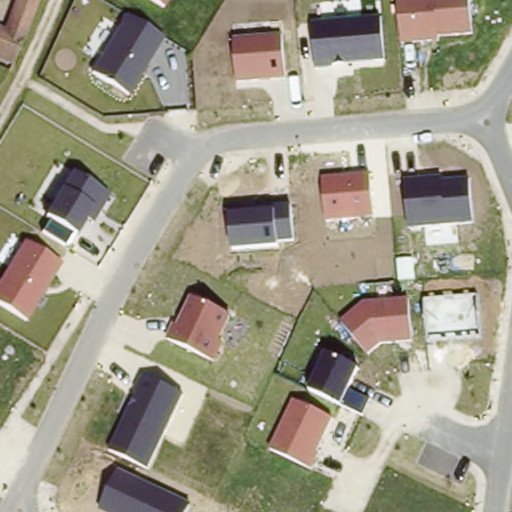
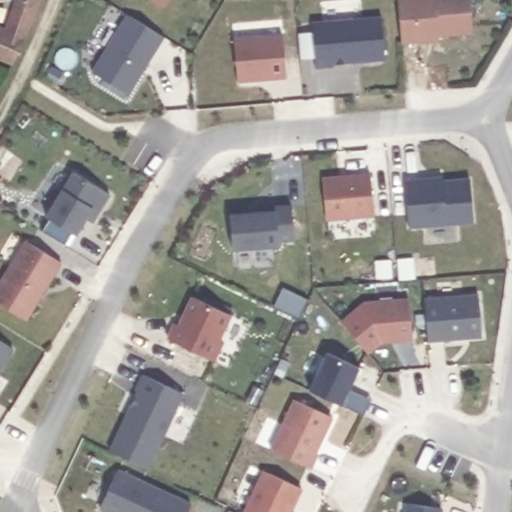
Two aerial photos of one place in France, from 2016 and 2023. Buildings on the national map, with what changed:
unchanged [(8,33),(20,0),(39,0),(15,65),(0,59),(0,29),(8,33)]
unchanged [(155,0),(165,0),(162,5),(155,0)]
unchanged [(438,36),(439,41),(400,45),(397,0),(469,0),(473,35),(438,36)]
unchanged [(165,38),(130,97),(92,72),(126,15),(165,38)]
unchanged [(385,61),(333,65),(333,69),(314,70),(312,24),(381,18),(385,61)]
unchanged [(287,78),(237,82),(233,39),(282,34),(287,78)]
unchanged [(107,192),(95,214),(90,209),(75,237),(70,235),(63,246),(40,232),(50,219),(45,216),(72,172),(107,192)]
unchanged [(375,217),(325,222),(322,177),(370,174),(375,217)]
unchanged [(473,225),(408,230),(405,181),(442,179),(443,182),(470,180),(473,225)]
unchanged [(275,211),(274,206),(292,206),(295,244),(279,244),(279,248),(231,250),(230,215),(275,211)]
unchanged [(62,263),(27,321),(0,305),(0,280),(23,240),(62,263)]
unchanged [(230,314),(210,359),(172,342),(192,296),(230,314)]
unchanged [(482,339),(426,344),(424,300),(478,296),(482,339)]
unchanged [(412,341),(382,345),(368,356),(340,322),(364,302),(408,299),(412,341)]
new [(14,350),(0,372),(0,341),(14,350)]
unchanged [(360,368),(349,390),(372,400),(363,416),(342,406),(308,390),(325,352),(360,368)]
unchanged [(149,471),(108,451),(142,376),(185,395),(149,471)]
unchanged [(333,418),(312,469),(269,450),(292,400),(333,418)]
unchanged [(192,504),(188,512),(101,512),(98,511),(118,469),(192,504)]
new [(262,470),(303,489),(293,512),(242,512),(262,470)]
new [(405,503),(442,508),(442,512),(404,512),(405,503)]

